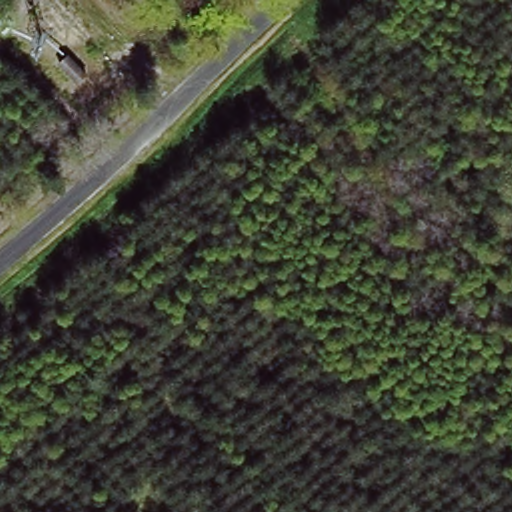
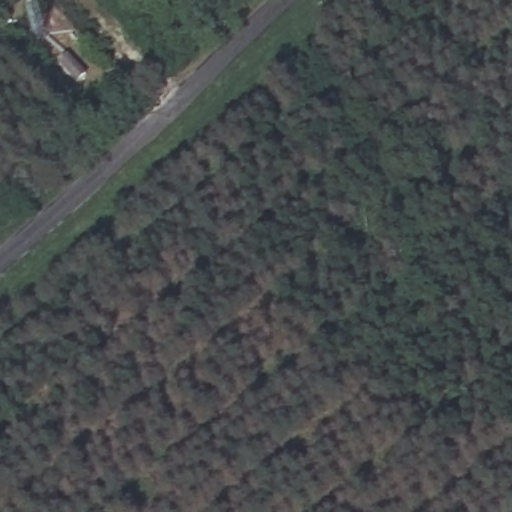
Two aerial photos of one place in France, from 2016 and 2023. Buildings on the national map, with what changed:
unchanged [(56,65),(67,51),(88,72),(74,82),(56,65)]

